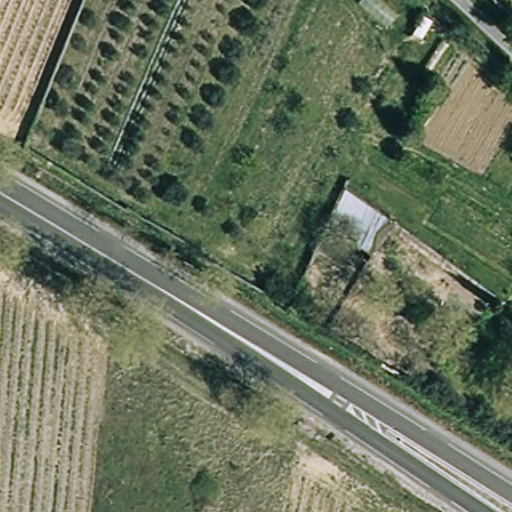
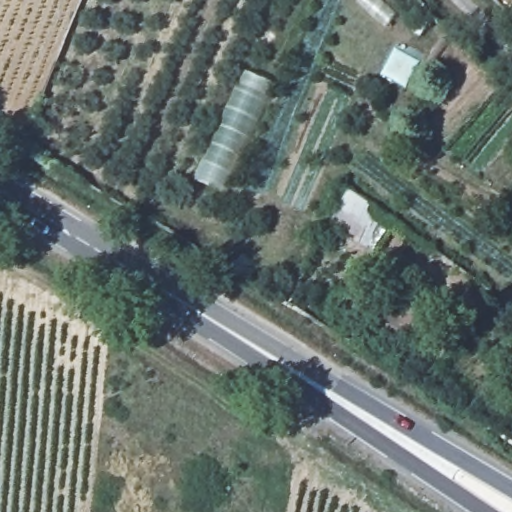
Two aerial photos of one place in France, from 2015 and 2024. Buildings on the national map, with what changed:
new [(244,73),(274,86),(226,195),(195,181),(244,73)]
unchanged [(344,188),(392,220),(374,250),(327,223),(344,188)]

